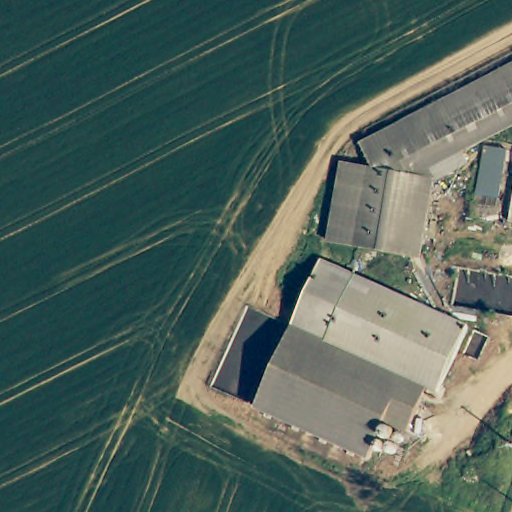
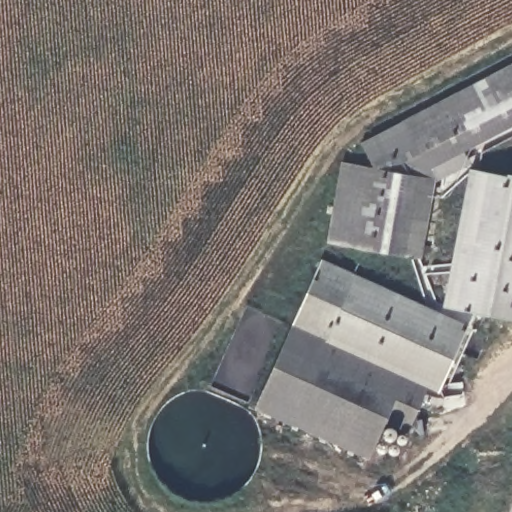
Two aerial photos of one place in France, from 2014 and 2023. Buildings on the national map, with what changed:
unchanged [(512,69),(512,129),(426,177),(430,183),(423,193),(411,265),(321,251),(333,171),(367,176),(354,152),(512,69)]
demolished [(477,155),(500,160),(480,276),(457,273),(477,155)]
new [(470,167),(512,176),(512,319),(442,305),(470,167)]
demolished [(498,268),(512,192),(512,271),(498,268)]
unchanged [(358,280),(462,320),(431,392),(411,437),(387,426),(371,462),(257,411),(324,265),(358,280)]

